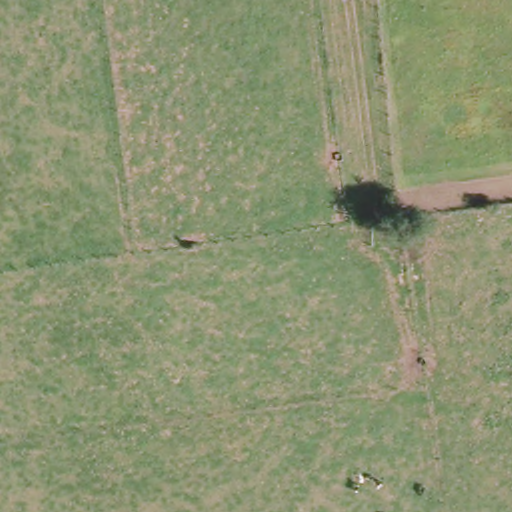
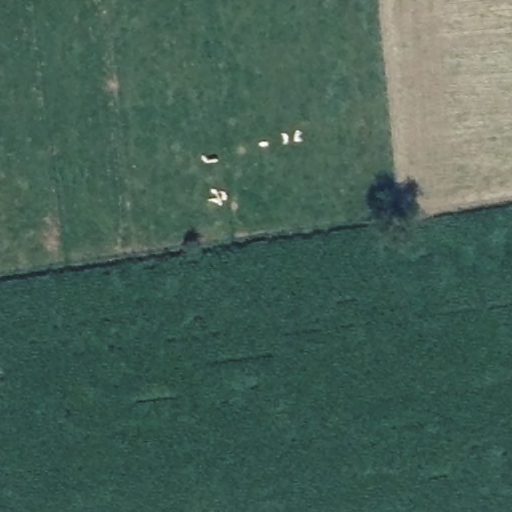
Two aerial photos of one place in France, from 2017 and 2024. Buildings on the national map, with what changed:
[]

